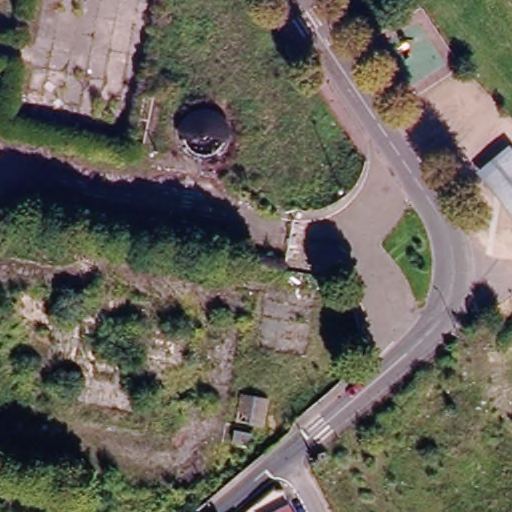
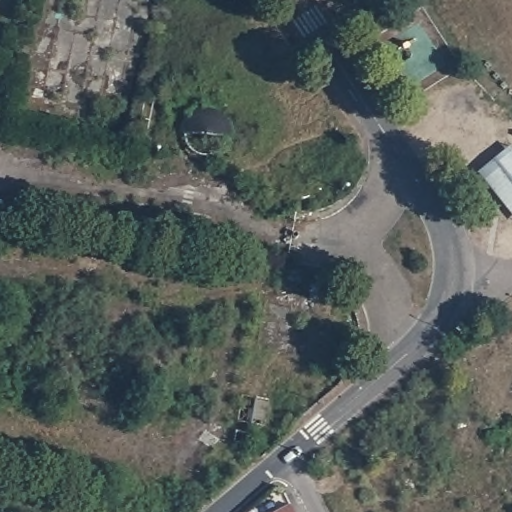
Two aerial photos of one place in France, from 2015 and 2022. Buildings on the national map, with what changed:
unchanged [(135,63),(145,65),(135,118),(124,116),(135,63)]
unchanged [(192,124),(194,121),(196,120),(199,119),(201,117),(203,116),(206,116),(208,116),(211,116),(214,117),(216,119),(218,120),(219,121),(221,123),(222,125),(223,127),(223,129),(224,130),(224,132),(224,134),(224,136),(223,138),(223,140),(222,141),(221,142),(220,144),(219,145),(218,146),(217,147),(216,148),(213,149),(212,149),(210,150),(209,150),(208,150),(206,150),(205,150),(203,150),(201,150),(200,149),(197,148),(196,146),(193,145),(192,143),(191,141),(190,139),(190,136),(190,134),(190,132),(190,131),(190,129),(191,127),(192,124)]
unchanged [(512,151),(512,199),(486,167),(510,148),(512,151)]
unchanged [(246,396),(272,401),(266,430),(241,425),(246,396)]
unchanged [(243,439),(256,438),(257,450),(244,450),(243,439)]
unchanged [(292,506),(295,512),(280,512),(292,506)]

